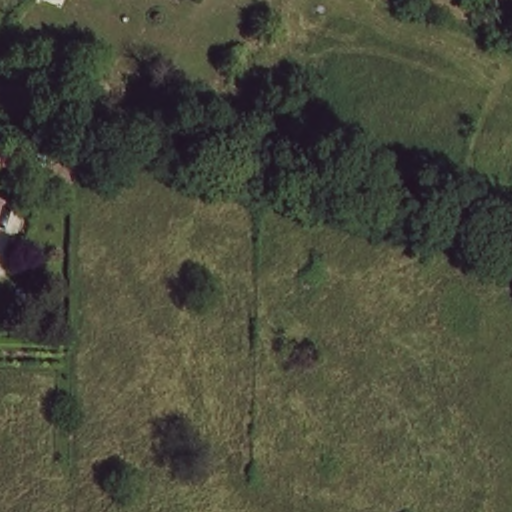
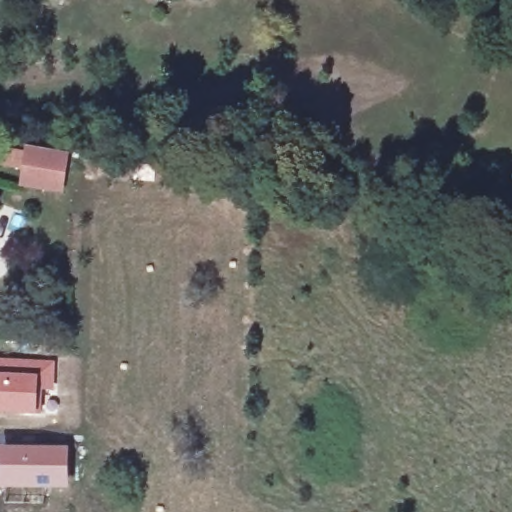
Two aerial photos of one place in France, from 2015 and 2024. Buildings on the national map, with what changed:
new [(24,150),(62,156),(57,189),(18,182),(24,150)]
new [(54,390),(40,390),(39,416),(0,414),(0,358),(55,360),(54,390)]
new [(70,490),(0,490),(0,448),(70,447),(70,490)]

